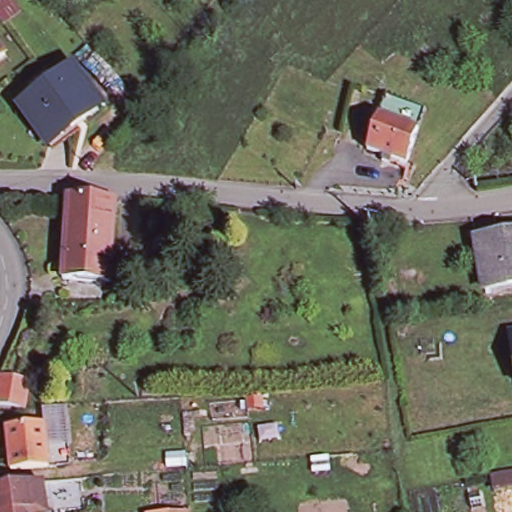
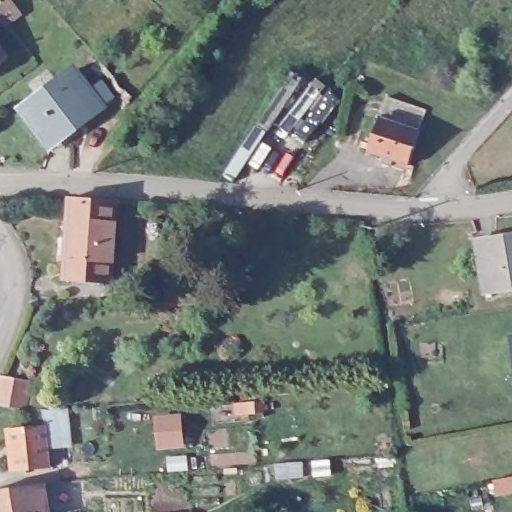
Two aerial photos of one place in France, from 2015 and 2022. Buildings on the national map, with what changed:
unchanged [(20,2),(29,12),(9,29),(0,18),(20,2)]
unchanged [(0,59),(0,48),(6,55),(0,59)]
unchanged [(70,67),(101,106),(47,147),(17,111),(70,67)]
unchanged [(381,106),(383,97),(424,106),(420,121),(418,128),(410,164),(370,153),(378,117),(381,106)]
unchanged [(117,198),(115,245),(67,241),(69,196),(117,198)]
unchanged [(512,238),(512,287),(484,292),(477,245),(512,238)]
unchanged [(114,281),(65,277),(67,241),(115,245),(114,281)]
unchanged [(512,335),(512,355),(509,336),(512,335)]
unchanged [(25,410),(0,406),(0,378),(30,382),(25,410)]
new [(181,415),(182,447),(157,449),(153,416),(181,415)]
unchanged [(46,428),(50,469),(11,471),(7,431),(46,428)]
unchanged [(48,512),(0,512),(0,493),(45,488),(48,512)]
demolished [(194,512),(172,512),(172,510),(193,507),(194,512)]

